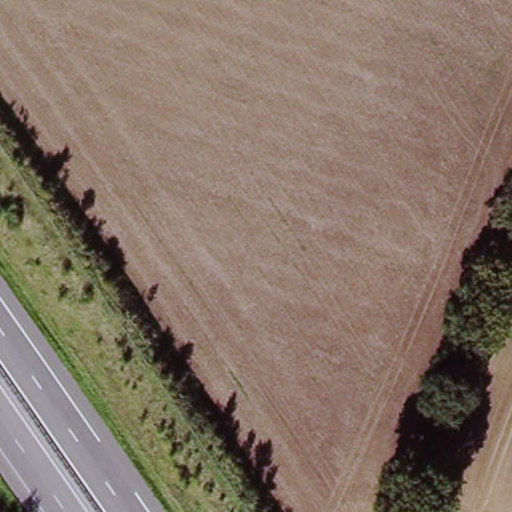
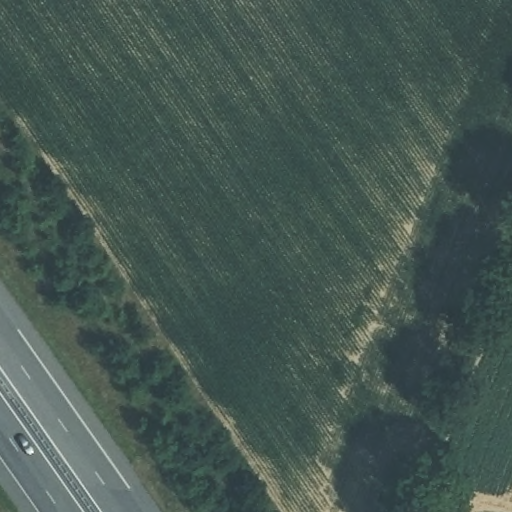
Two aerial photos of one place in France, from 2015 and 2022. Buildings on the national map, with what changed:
[]

